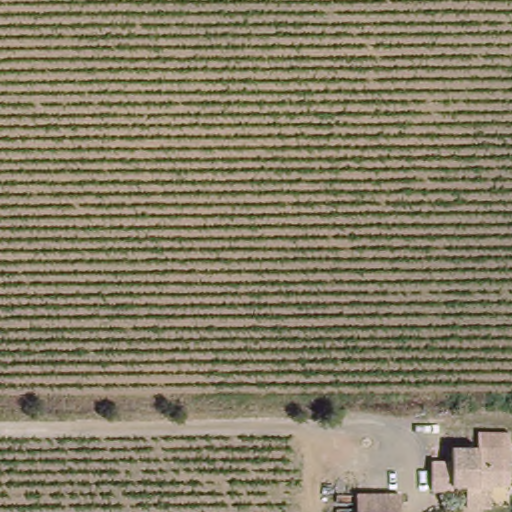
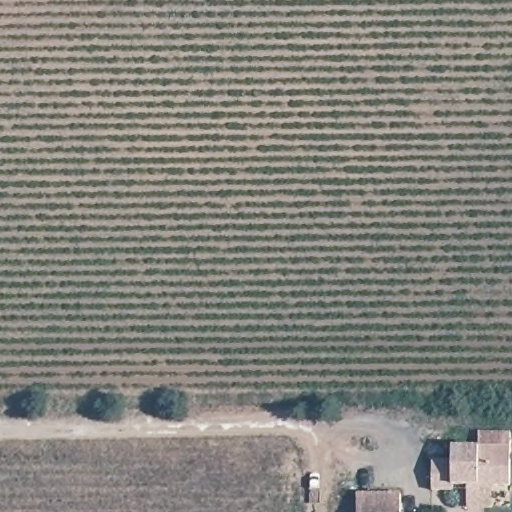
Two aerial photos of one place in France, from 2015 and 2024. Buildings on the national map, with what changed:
unchanged [(457,488),(456,496),(431,495),(431,465),(455,467),(455,451),(478,453),(478,435),(509,437),(509,452),(509,490),(457,488)]

